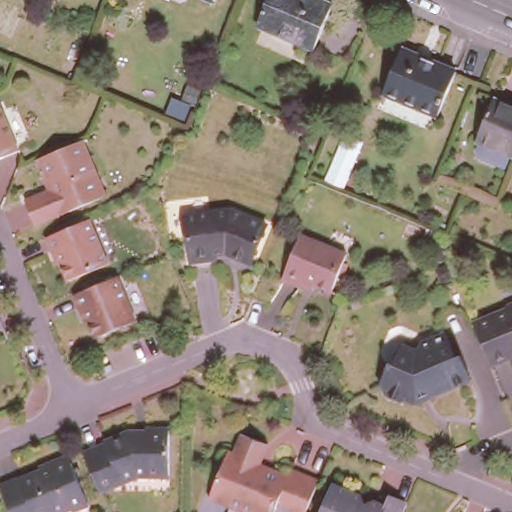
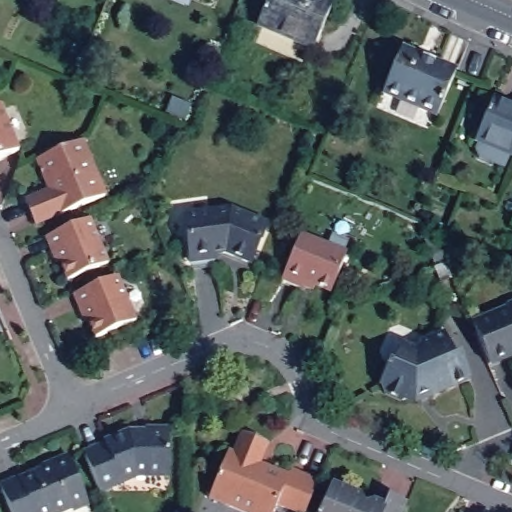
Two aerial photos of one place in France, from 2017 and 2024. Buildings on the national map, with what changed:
unchanged [(255,22),(264,0),(322,0),(330,3),(312,47),(255,22)]
unchanged [(435,110),(382,88),(400,42),(454,65),(435,110)]
unchanged [(497,92),(512,99),(512,149),(478,134),(497,92)]
unchanged [(22,145),(0,154),(0,100),(3,99),(22,145)]
unchanged [(39,219),(29,194),(55,183),(52,178),(50,179),(41,155),(87,135),(111,189),(39,219)]
unchanged [(270,218),(252,257),(231,247),(219,248),(219,255),(195,258),(189,210),(235,204),(270,218)]
unchanged [(51,254),(44,237),(89,218),(107,263),(66,279),(60,264),(56,266),(51,254)]
unchanged [(331,291),(314,284),(312,288),(301,283),(299,287),(280,279),(299,235),(346,254),(331,291)]
unchanged [(83,304),(77,290),(122,271),(140,314),(100,331),(93,314),(88,316),(83,304)]
unchanged [(505,302),(512,299),(512,349),(489,359),(472,318),(501,306),(505,302)]
unchanged [(415,398),(413,397),(405,400),(390,393),(385,385),(382,384),(392,361),(396,363),(404,344),(419,351),(422,349),(426,343),(449,334),(459,358),(465,356),(475,380),(455,388),(449,385),(443,387),(443,388),(443,390),(442,391),(442,392),(441,393),(440,394),(439,395),(438,395),(436,396),(434,395),(432,394),(431,393),(431,392),(415,398)]
unchanged [(104,431),(127,422),(146,422),(147,420),(168,420),(167,464),(137,463),(99,480),(84,443),(104,434),(104,431)]
unchanged [(303,511),(298,509),(297,508),(277,499),(271,512),(257,512),(229,500),(230,496),(211,489),(209,492),(206,491),(226,444),(230,445),(229,447),(232,448),(241,428),(266,439),(256,463),(264,466),(266,461),(286,470),(289,462),(318,474),(303,511)]
unchanged [(49,462),(51,459),(69,452),(88,498),(73,505),(71,502),(48,512),(12,512),(0,482),(0,481),(20,472),(22,474),(49,462)]
unchanged [(360,495),(362,503),(372,500),(383,505),(387,496),(406,504),(402,512),(321,512),(332,484),(360,495)]

